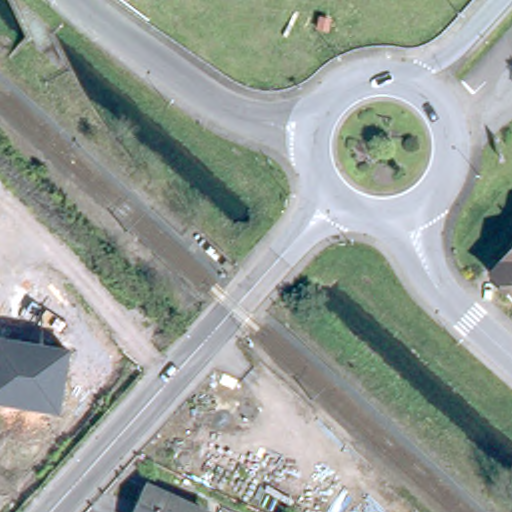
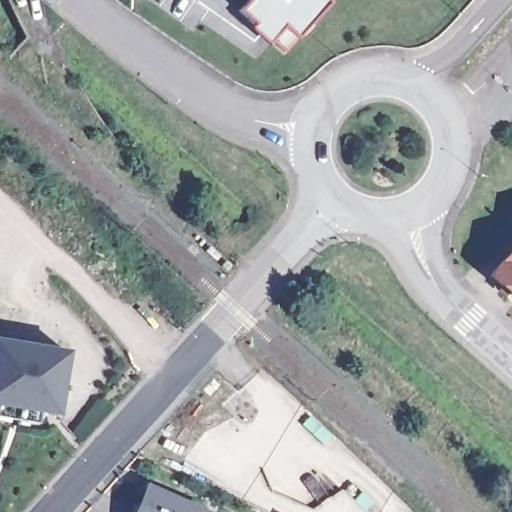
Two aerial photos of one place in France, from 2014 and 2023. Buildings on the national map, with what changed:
new [(274,38),(269,42),(251,28),(255,24),(240,8),(248,0),(329,0),(330,1),(297,36),(286,49),(274,38)]
unchanged [(494,272),(512,252),(512,288),(494,272)]
unchanged [(60,415),(0,405),(0,337),(70,349),(60,415)]
unchanged [(145,486),(205,512),(134,512),(145,486)]

